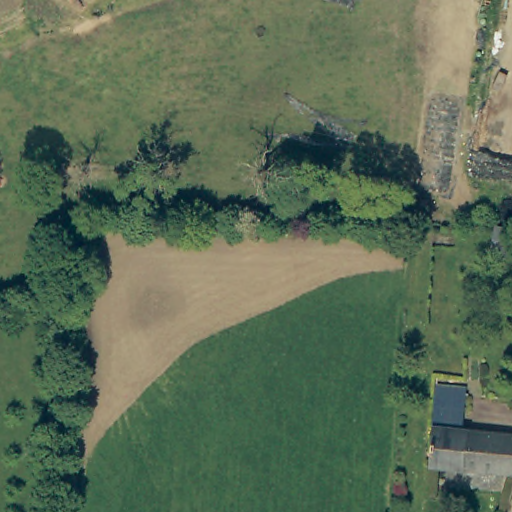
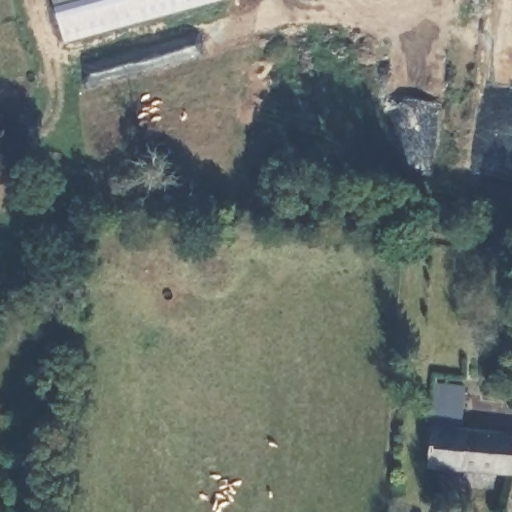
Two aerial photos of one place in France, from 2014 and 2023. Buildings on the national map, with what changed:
new [(65,42),(54,0),(221,0),(65,42)]
unchanged [(471,393),(469,427),(437,425),(441,391),(471,393)]
unchanged [(512,432),(512,470),(507,471),(435,463),(437,425),(469,427),(504,431),(512,432)]

